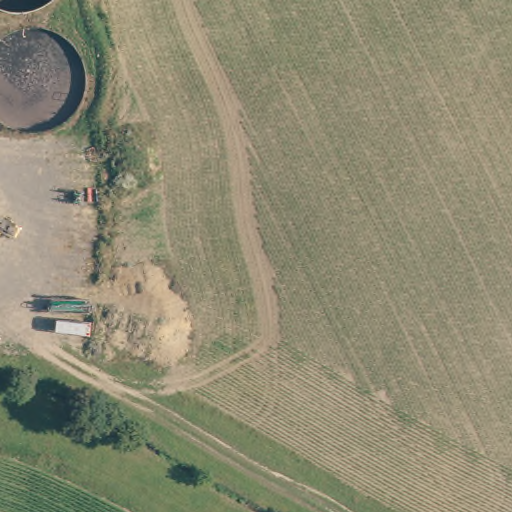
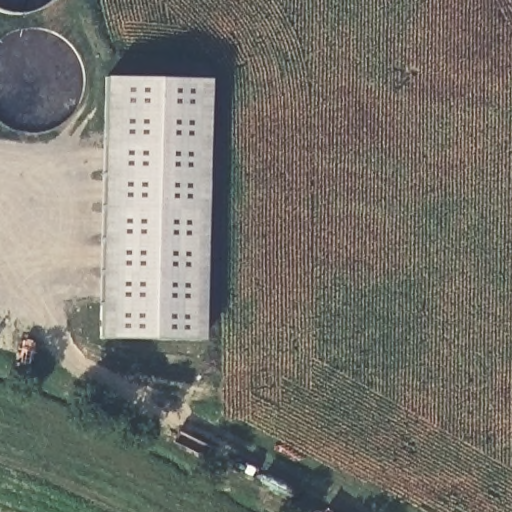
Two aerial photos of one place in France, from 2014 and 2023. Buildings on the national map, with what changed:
new [(97,337),(104,78),(208,80),(201,339),(97,337)]

